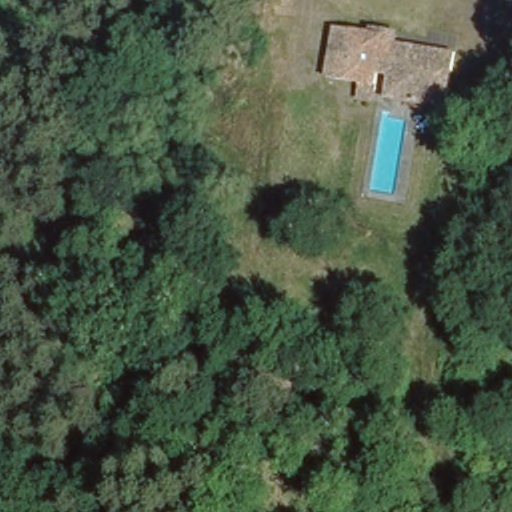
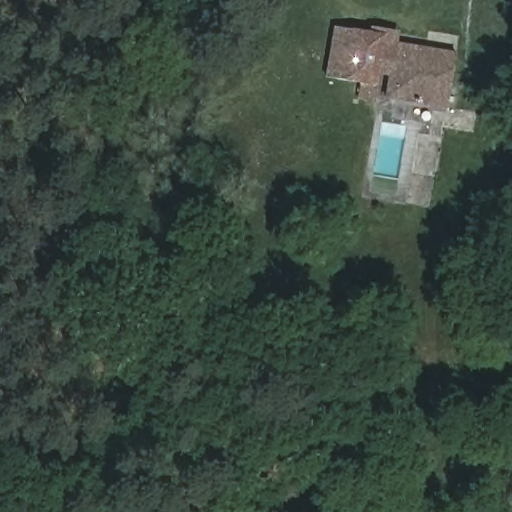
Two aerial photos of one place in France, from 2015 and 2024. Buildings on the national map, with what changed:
unchanged [(383,36),(375,74),(374,81),(323,73),(337,26),(383,36)]
unchanged [(383,36),(455,51),(444,108),(382,99),(386,76),(375,74),(383,36)]

